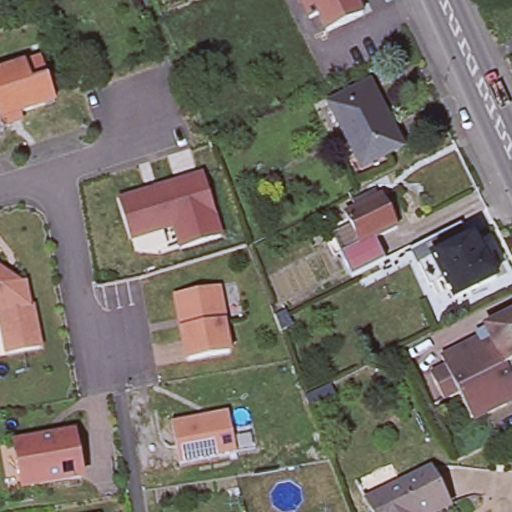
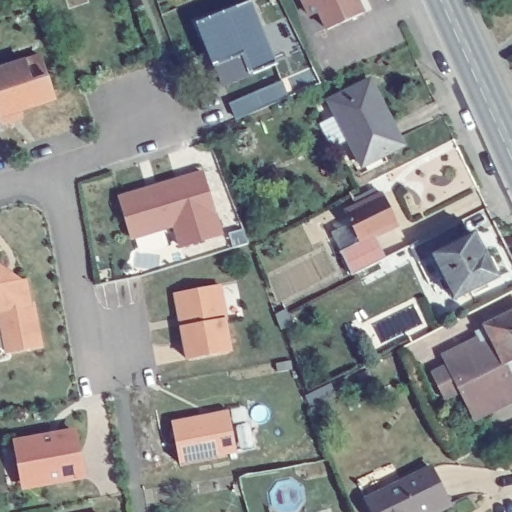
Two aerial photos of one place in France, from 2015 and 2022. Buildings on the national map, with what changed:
new [(248,0),(266,44),(261,46),(269,66),(221,85),(213,63),(218,61),(209,39),(203,41),(196,22),(248,0)]
unchanged [(366,11),(329,27),(322,9),(313,13),(307,0),(361,0),(366,11)]
unchanged [(0,124),(0,67),(38,55),(48,89),(52,100),(43,102),(18,111),(20,118),(3,124),(0,124)]
new [(281,80),(288,96),(236,119),(229,102),(281,80)]
unchanged [(402,143),(361,164),(328,97),(362,80),(380,116),(387,112),(402,143)]
unchanged [(179,249),(173,229),(161,232),(166,249),(138,257),(134,242),(130,243),(116,197),(203,171),(223,235),(179,249)]
unchanged [(347,272),(334,247),(326,229),(344,221),(339,210),(377,192),(392,224),(370,234),(380,256),(347,272)]
unchanged [(488,258),(495,262),(501,273),(499,278),(499,282),(457,302),(435,259),(422,266),(414,251),(441,237),(468,224),(476,239),(477,238),(488,258)]
unchanged [(32,307),(36,307),(36,311),(1,317),(1,315),(0,315),(0,266),(26,285),(28,284),(32,307)]
unchanged [(178,291),(218,285),(224,319),(223,319),(229,351),(186,359),(179,326),(177,312),(174,297),(178,291)]
unchanged [(43,351),(8,357),(1,317),(36,311),(43,351)]
unchanged [(483,331),(483,330),(512,315),(512,365),(503,370),(483,331)]
unchanged [(512,385),(512,398),(502,403),(504,407),(487,415),(484,412),(469,419),(457,395),(443,402),(429,377),(445,369),(440,358),(474,342),(478,333),(483,331),(503,370),(512,365),(512,381),(511,382),(512,385)]
unchanged [(227,410),(235,453),(178,463),(170,421),(227,410)]
unchanged [(18,442),(72,432),(79,476),(25,486),(18,442)]
unchanged [(429,463),(446,501),(422,512),(372,512),(364,494),(429,463)]

